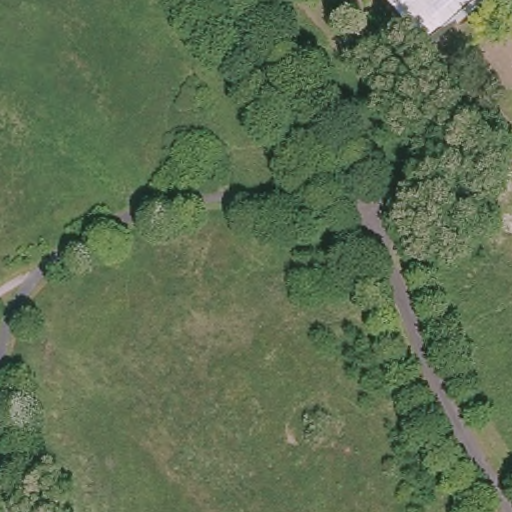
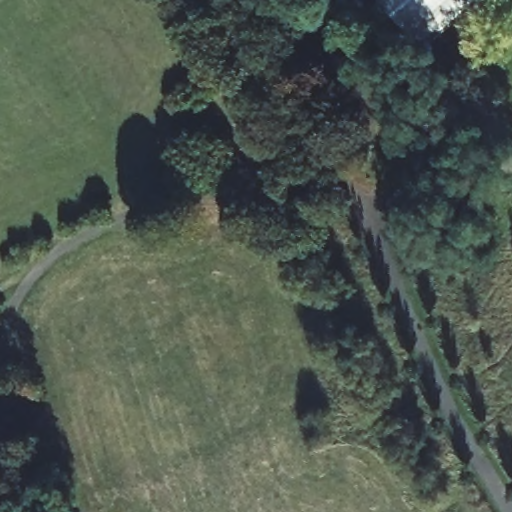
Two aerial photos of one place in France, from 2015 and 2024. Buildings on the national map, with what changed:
unchanged [(424,42),(390,0),(475,0),(424,42)]

